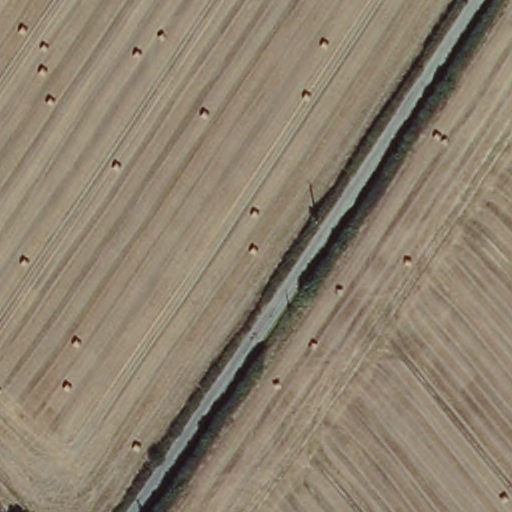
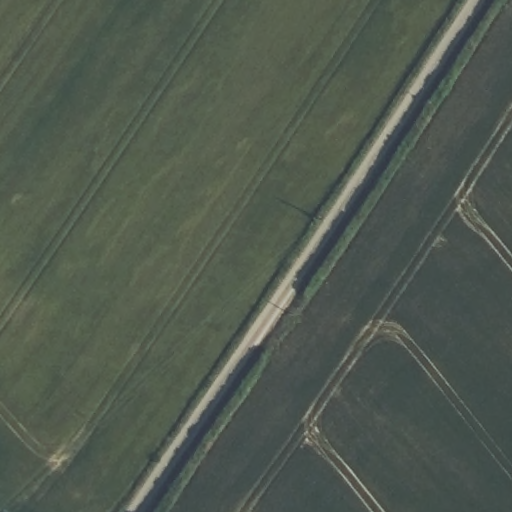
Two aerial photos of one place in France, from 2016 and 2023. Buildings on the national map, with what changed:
[]

